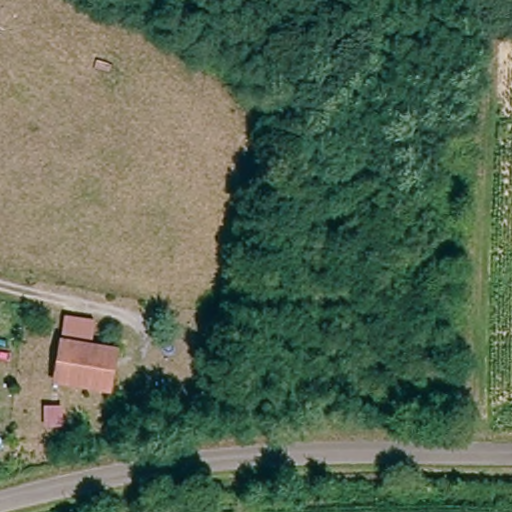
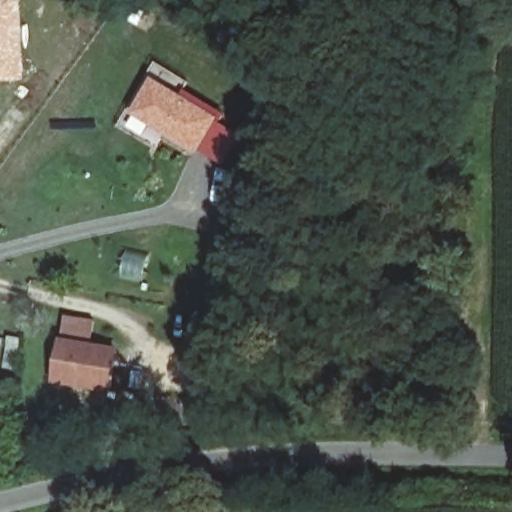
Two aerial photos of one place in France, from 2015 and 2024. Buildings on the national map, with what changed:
new [(22,78),(0,79),(0,0),(20,0),(22,78)]
new [(153,77),(223,116),(218,121),(197,153),(194,155),(162,137),(131,115),(153,77)]
new [(218,121),(240,136),(223,167),(197,153),(218,121)]
unchanged [(113,356),(107,395),(95,393),(55,386),(61,345),(102,351),(106,352),(113,356)]

